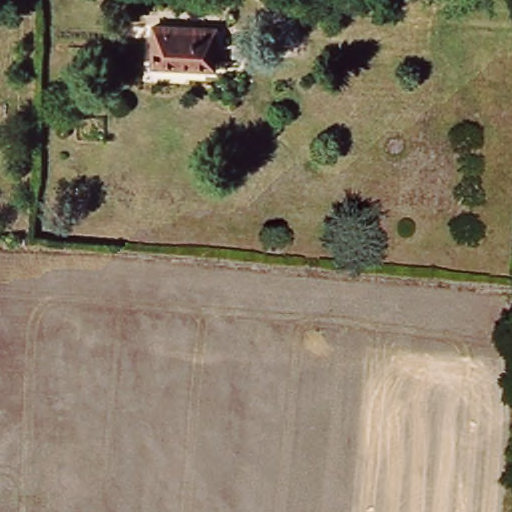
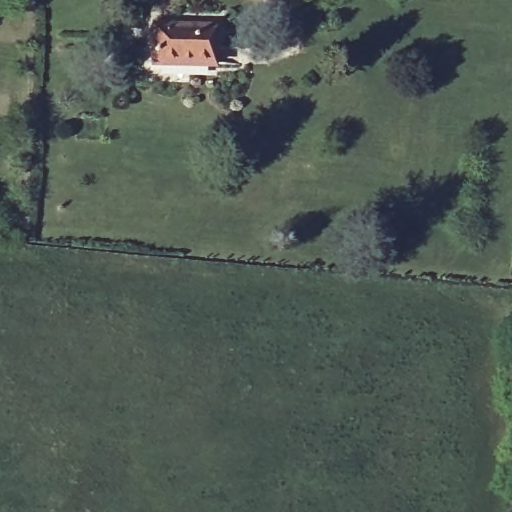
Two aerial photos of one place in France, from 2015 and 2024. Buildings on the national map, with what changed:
unchanged [(155,68),(156,33),(215,34),(215,69),(155,68)]

